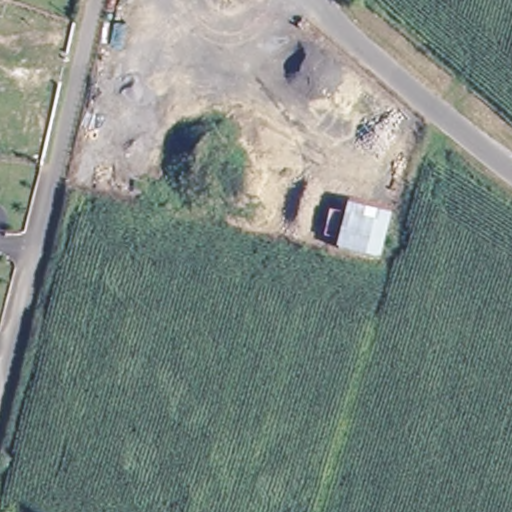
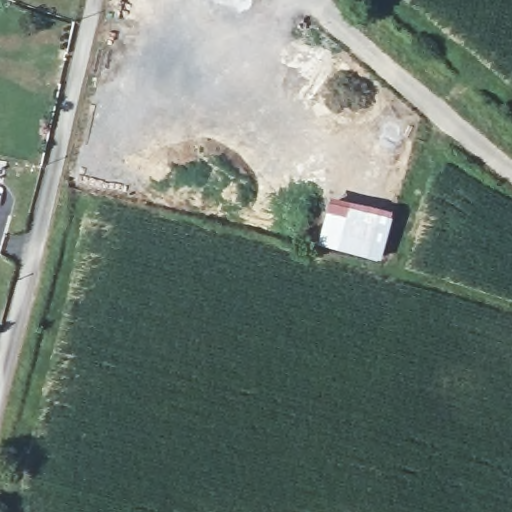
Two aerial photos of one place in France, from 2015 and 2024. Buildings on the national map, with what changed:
unchanged [(350,203),(392,214),(381,260),(337,249),(350,203)]

